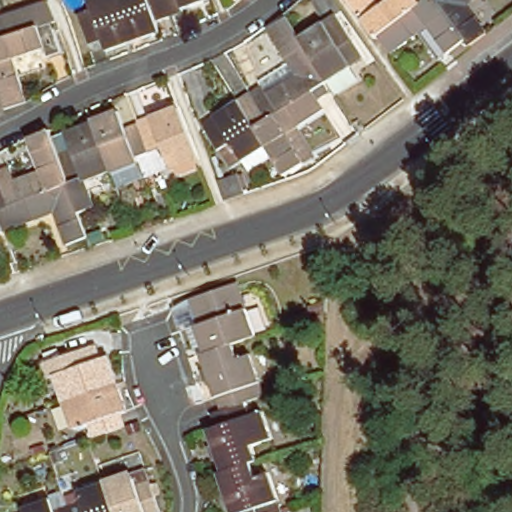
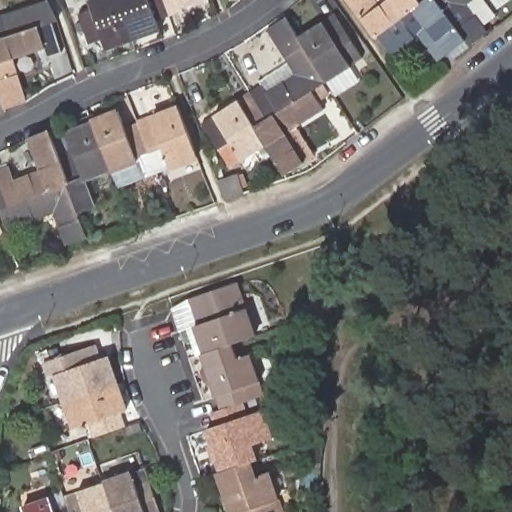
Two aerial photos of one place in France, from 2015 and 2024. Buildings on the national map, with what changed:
unchanged [(183,11),(155,20),(160,33),(106,50),(103,40),(89,44),(79,15),(94,10),(90,0),(196,0),(180,5),(183,11)]
unchanged [(390,54),(377,37),(377,38),(362,18),(349,0),(374,0),(380,7),(389,0),(470,0),(465,4),(485,32),(466,46),(463,42),(447,55),(437,62),(417,34),(390,54)]
unchanged [(37,9),(47,5),(48,5),(55,26),(53,27),(63,57),(47,62),(45,54),(11,65),(25,106),(5,112),(1,101),(0,101),(0,20),(37,9)]
unchanged [(220,150),(219,150),(202,125),(262,86),(261,80),(287,64),(266,30),(286,17),(298,37),(336,14),(352,41),(362,60),(351,67),(311,92),(323,112),(297,129),(315,156),(303,163),(283,175),(272,157),(247,172),(242,161),(232,167),(220,150)]
unchanged [(8,168),(13,182),(40,171),(28,139),(49,131),(57,153),(70,148),(64,131),(81,125),(79,116),(89,114),(100,110),(101,117),(118,111),(124,127),(178,107),(197,156),(170,166),(161,146),(135,157),(136,160),(142,172),(113,183),(86,192),(91,205),(76,211),(86,237),(65,245),(54,215),(0,235),(0,171),(8,168)]
unchanged [(237,175),(244,194),(225,200),(219,182),(237,175)]
unchanged [(212,419),(221,415),(217,402),(214,403),(200,360),(197,361),(188,334),(180,336),(172,312),(191,304),(236,288),(245,314),(247,313),(255,340),(232,350),(238,365),(250,361),(259,388),(247,392),(251,405),(242,408),(247,421),(261,416),(271,445),(250,451),(255,465),(249,468),(254,483),(266,480),(277,512),(228,512),(216,480),(222,477),(210,435),(216,432),(212,419)]
unchanged [(116,383),(65,400),(56,373),(50,376),(45,362),(95,345),(100,358),(107,356),(116,383)]
unchanged [(126,410),(119,412),(124,426),(95,436),(95,435),(90,422),(75,427),(65,400),(116,383),(126,410)]
unchanged [(81,503),(78,493),(131,475),(136,488),(150,483),(160,512),(55,512),(81,503)]
unchanged [(22,507),(50,497),(55,512),(23,512),(22,507)]

